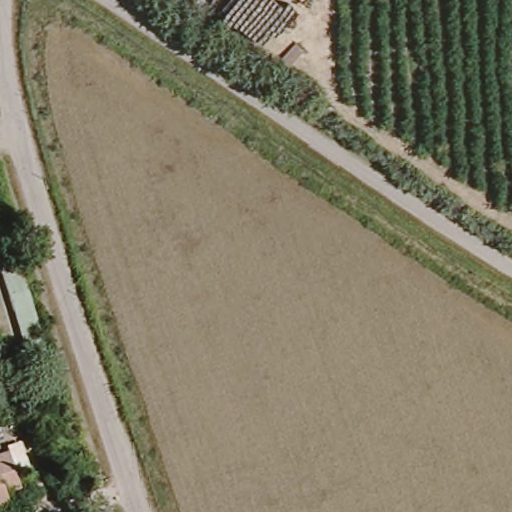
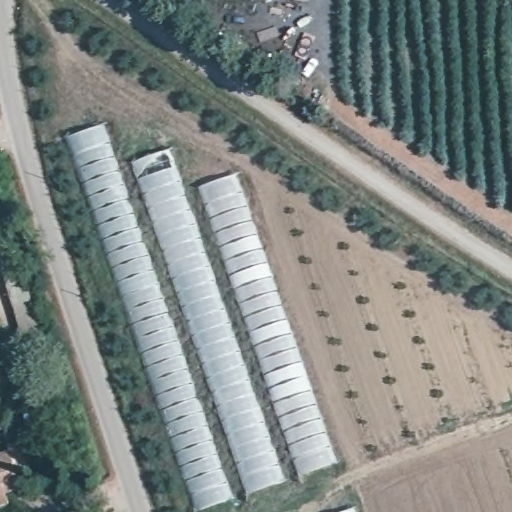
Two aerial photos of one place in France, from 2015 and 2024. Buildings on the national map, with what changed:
new [(69,138),(104,126),(119,169),(170,152),(185,197),(239,176),(338,464),(199,511),(69,138)]
new [(45,345),(27,349),(0,265),(0,199),(45,345)]
new [(9,451),(8,446),(23,442),(32,471),(16,476),(20,492),(8,496),(12,512),(0,512),(0,454),(9,451)]
demolished [(1,470),(0,458),(26,453),(31,496),(6,501),(6,512),(0,512),(0,470),(1,470)]
new [(353,512),(342,512),(352,508),(353,512)]

